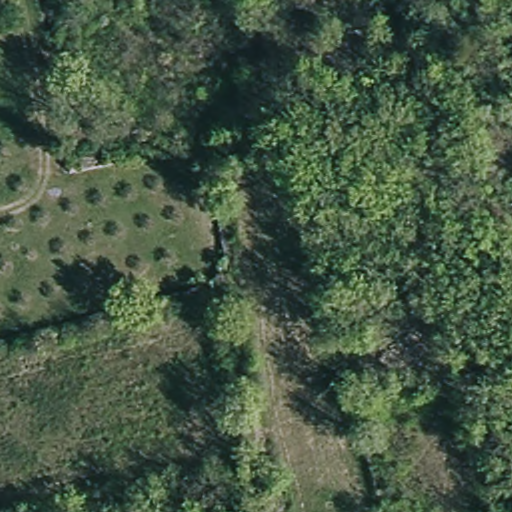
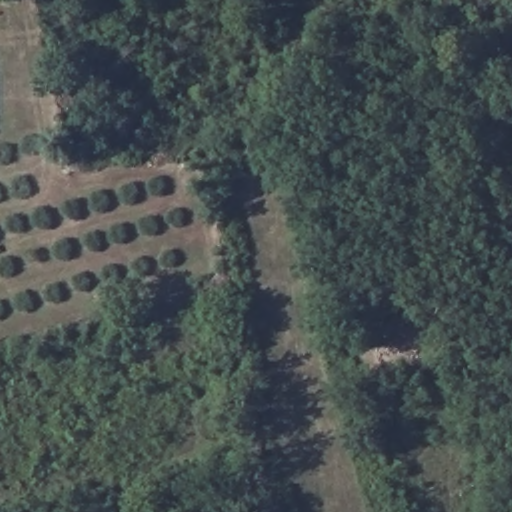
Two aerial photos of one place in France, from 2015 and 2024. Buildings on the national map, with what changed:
[]

